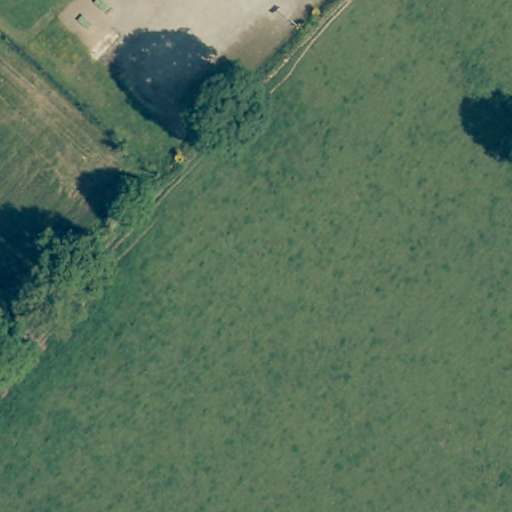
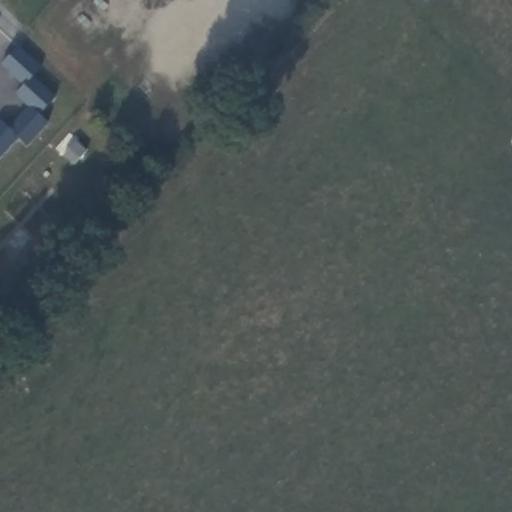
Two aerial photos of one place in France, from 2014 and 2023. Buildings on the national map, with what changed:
new [(34,76),(55,97),(39,115),(48,122),(28,147),(18,138),(0,158),(0,120),(9,128),(27,106),(14,95),(22,83),(1,66),(18,46),(41,67),(34,76)]

